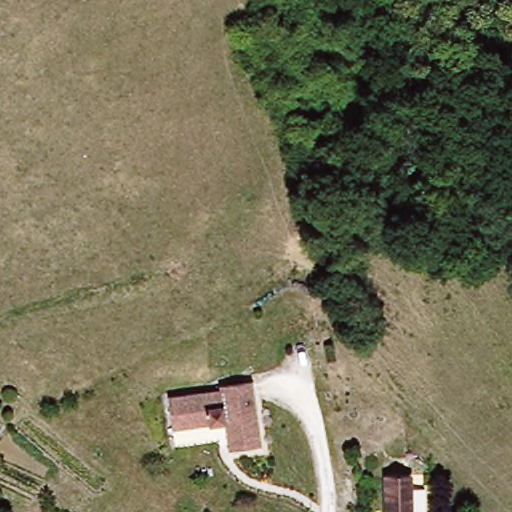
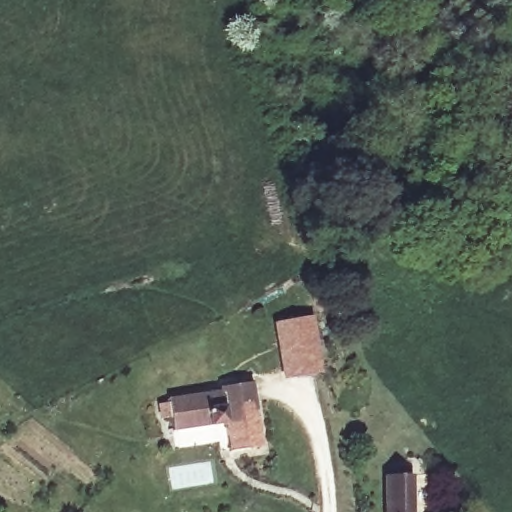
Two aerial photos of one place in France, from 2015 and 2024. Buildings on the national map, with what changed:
new [(313,316),(323,372),(281,380),(271,322),(313,316)]
unchanged [(232,454),(226,426),(173,437),(166,405),(218,392),(218,390),(232,386),(251,381),(255,399),(264,446),(232,454)]
unchanged [(416,475),(415,512),(388,512),(389,475),(416,475)]

